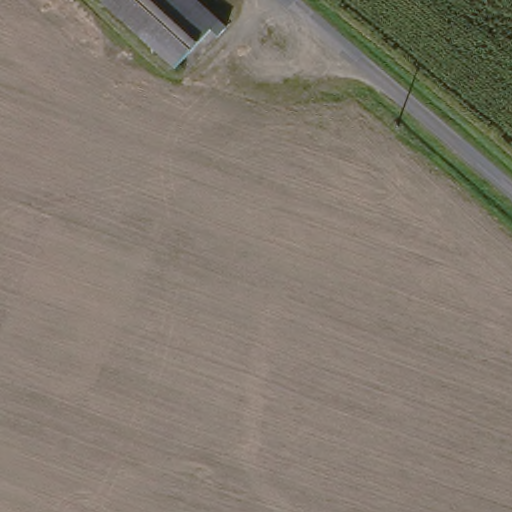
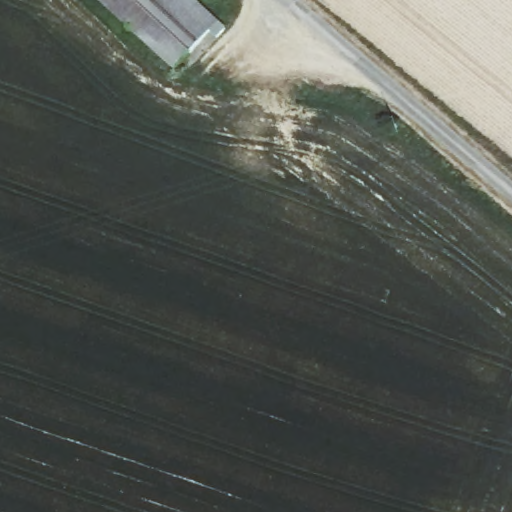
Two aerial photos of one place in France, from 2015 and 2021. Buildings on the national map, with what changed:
unchanged [(208,30),(164,75),(83,0),(177,0),(208,30)]

